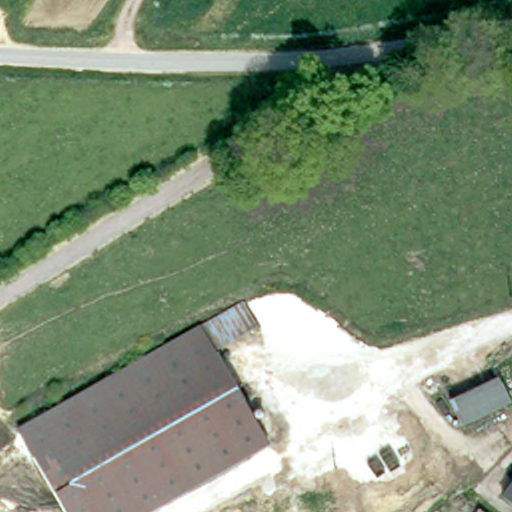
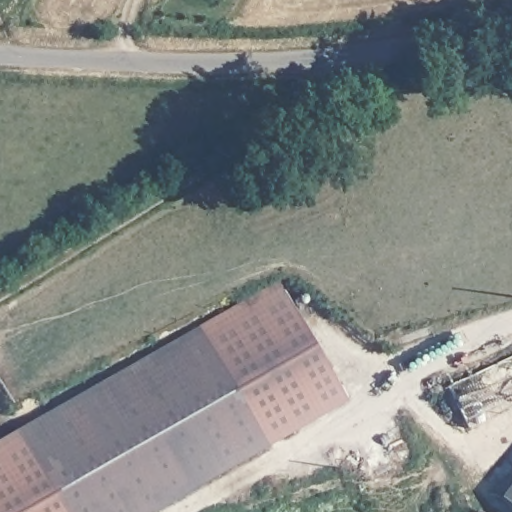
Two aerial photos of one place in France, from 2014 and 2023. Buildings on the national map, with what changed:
new [(277,280),(347,400),(269,444),(222,362),(202,325),(277,280)]
unchanged [(27,425),(94,387),(202,325),(222,362),(269,444),(149,512),(65,512),(45,476),(18,430),(27,425)]
new [(0,440),(18,430),(45,476),(65,512),(0,512),(0,440)]
unchanged [(507,502),(512,496),(512,506),(507,502)]

